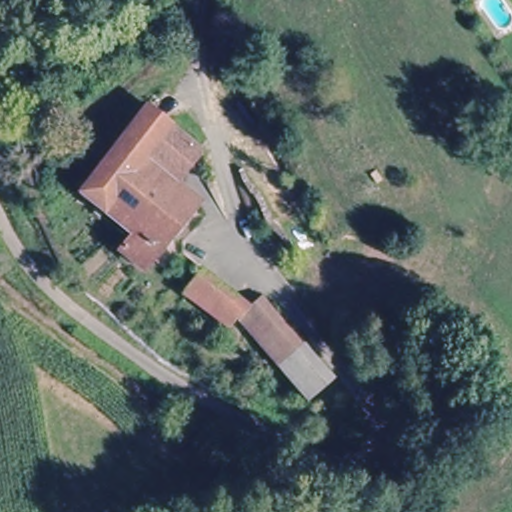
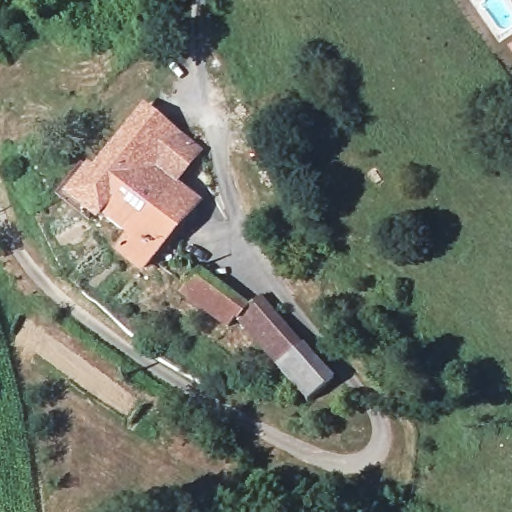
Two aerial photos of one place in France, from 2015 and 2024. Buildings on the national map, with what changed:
unchanged [(152,250),(139,267),(120,252),(131,238),(73,193),(145,100),(164,114),(190,133),(199,140),(187,156),(173,175),(196,192),(152,250)]
unchanged [(207,264),(251,303),(261,292),(300,333),(274,358),(245,329),(235,319),(229,325),(185,288),(191,282),(207,264)]
unchanged [(300,333),(331,365),(304,390),(274,358),(300,333)]

